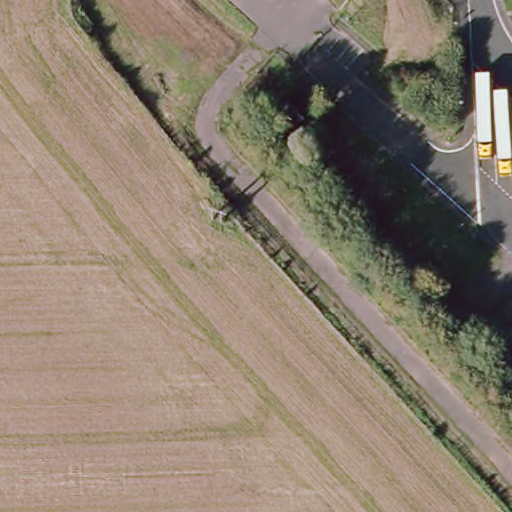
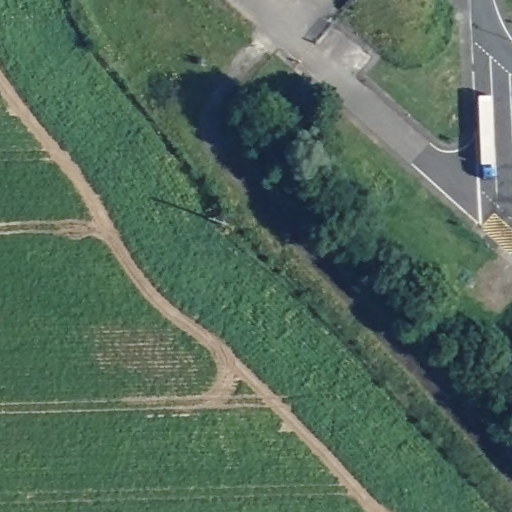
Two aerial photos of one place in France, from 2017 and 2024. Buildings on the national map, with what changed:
[]

